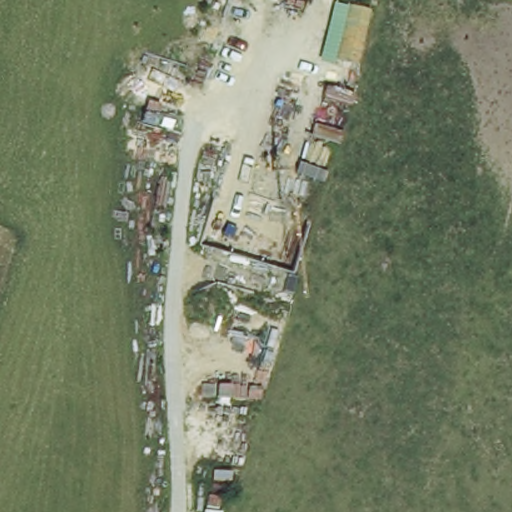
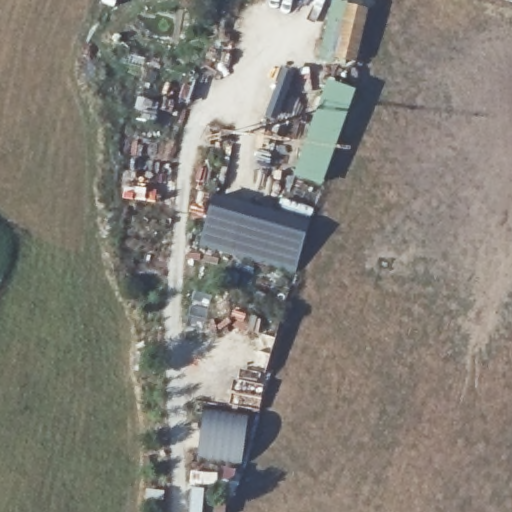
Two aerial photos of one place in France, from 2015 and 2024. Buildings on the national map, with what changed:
new [(356,63),(334,58),(331,65),(318,61),(333,1),(369,10),(356,63)]
new [(356,91),(323,186),(294,177),(330,81),(356,91)]
new [(295,273),(201,244),(214,195),(309,223),(295,273)]
new [(203,410),(248,418),(241,466),(197,459),(203,410)]

